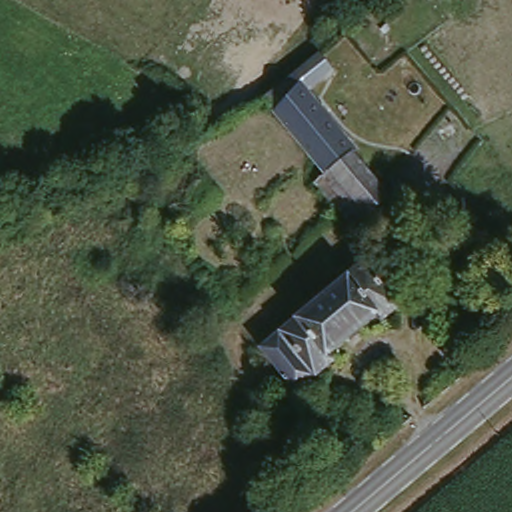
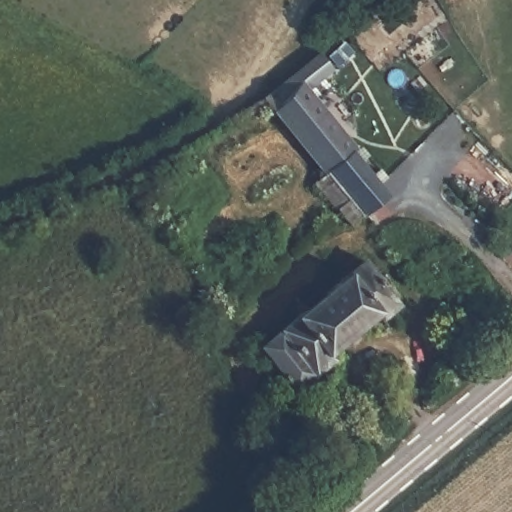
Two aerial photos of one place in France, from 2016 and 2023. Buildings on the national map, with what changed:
unchanged [(265,94),(322,46),(340,71),(313,92),(356,145),(325,172),(265,94)]
unchanged [(356,145),(402,200),(371,227),(325,172),(356,145)]
unchanged [(290,399),(277,385),(288,375),(259,342),(364,255),(403,302),(387,316),(382,308),(335,346),(342,356),(300,391),(290,399)]

